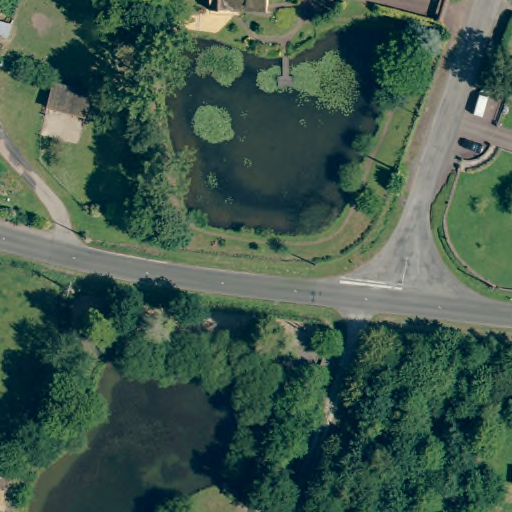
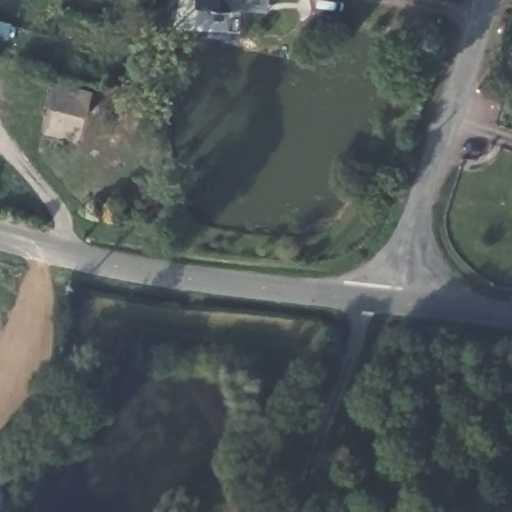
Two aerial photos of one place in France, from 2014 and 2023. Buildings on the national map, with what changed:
unchanged [(235,16),(214,16),(214,0),(271,0),(272,9),(235,8),(235,16)]
unchanged [(5,35),(0,33),(0,20),(9,23),(5,35)]
unchanged [(52,82),(96,92),(86,116),(46,107),(52,82)]

